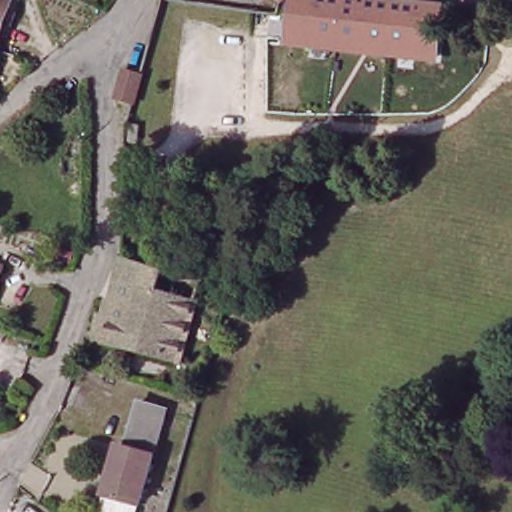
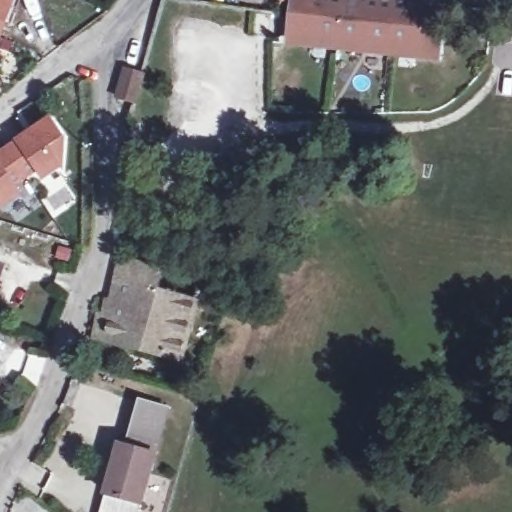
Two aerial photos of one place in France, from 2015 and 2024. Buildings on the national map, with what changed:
unchanged [(15,6),(0,45),(0,0),(15,6)]
unchanged [(276,7),(275,8),(273,7),(272,7),(270,6),(269,6),(268,5),(267,3),(266,2),(265,1),(265,0),(283,0),(283,1),(282,3),(282,4),(279,7),(276,7)]
unchanged [(441,9),(434,62),(413,59),(367,53),(321,47),(285,43),(286,33),(290,0),(372,0),(441,9)]
unchanged [(139,105),(122,102),(129,73),(146,75),(139,105)]
new [(49,116),(66,140),(65,169),(45,184),(36,170),(17,183),(25,195),(7,209),(0,207),(0,149),(49,116)]
unchanged [(181,359),(108,340),(108,337),(95,335),(100,316),(110,317),(123,257),(123,256),(205,282),(181,359)]
unchanged [(5,270),(0,286),(0,269),(5,270)]
unchanged [(136,450),(146,409),(164,414),(136,512),(96,512),(115,445),(136,450)]

